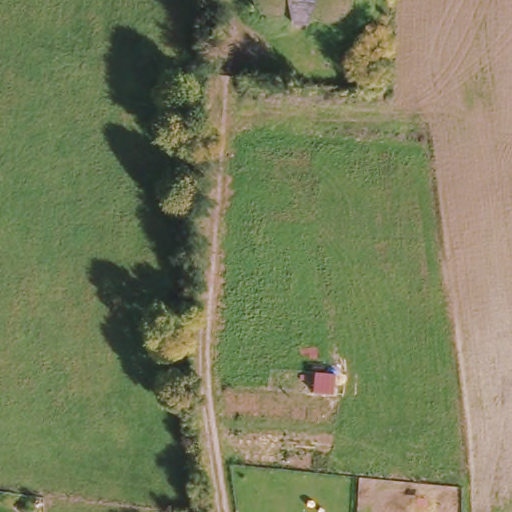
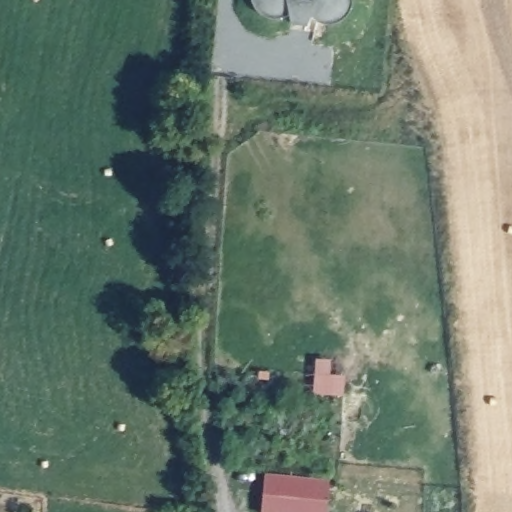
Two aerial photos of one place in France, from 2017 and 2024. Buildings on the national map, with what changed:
new [(313,393),(316,358),(331,360),(330,373),(346,375),(345,396),(313,393)]
new [(330,480),(327,512),(261,512),(265,472),(330,480)]

